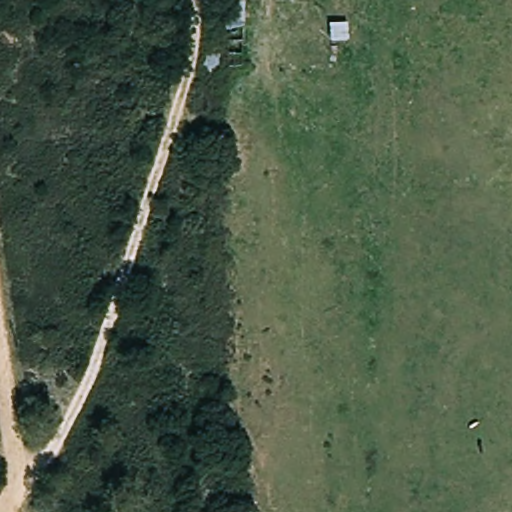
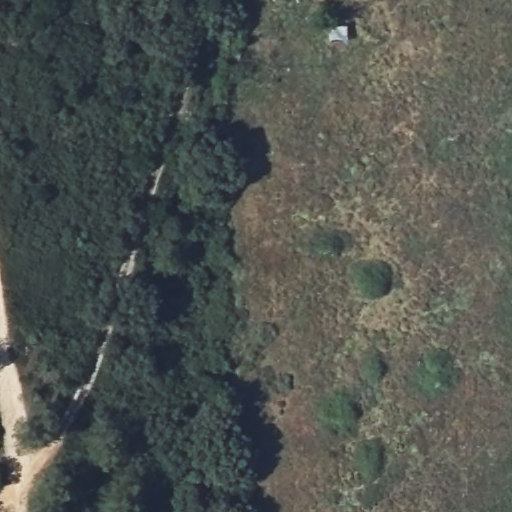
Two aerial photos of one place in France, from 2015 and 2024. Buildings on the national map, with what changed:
unchanged [(226,11),(227,2),(227,0),(241,0),(241,10),(226,11)]
unchanged [(341,44),(331,44),(331,27),(349,27),(349,44),(341,44)]
unchanged [(223,70),(224,40),(243,40),(241,70),(223,70)]

